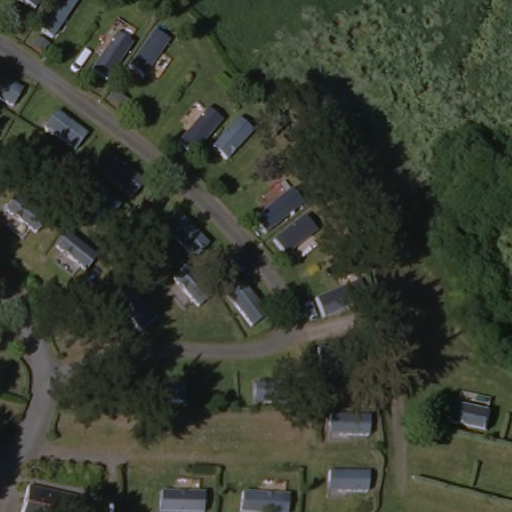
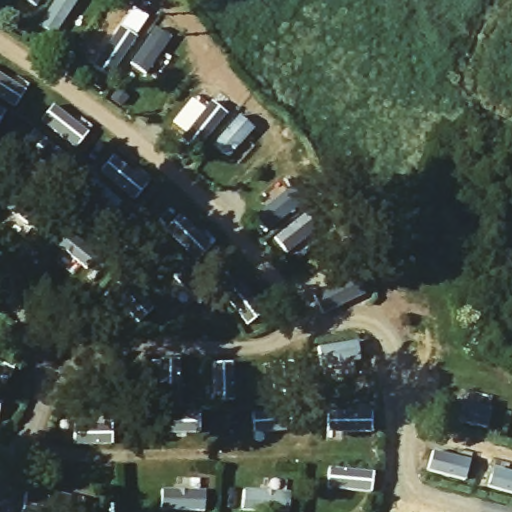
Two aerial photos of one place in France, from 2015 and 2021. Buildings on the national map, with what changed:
unchanged [(28,489),(83,499),(80,512),(22,512),(28,489)]

